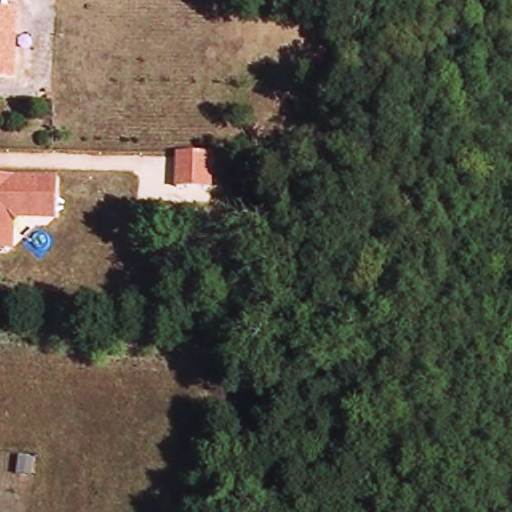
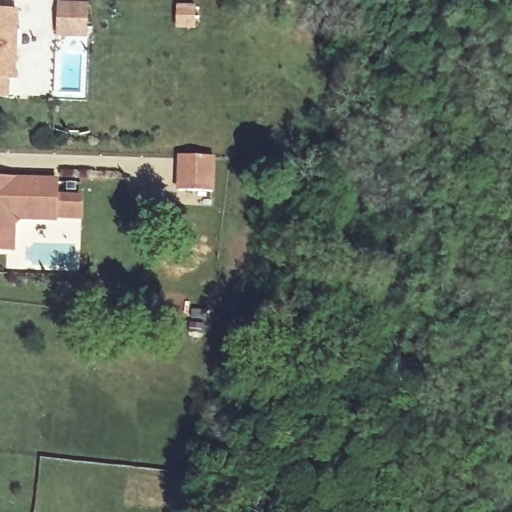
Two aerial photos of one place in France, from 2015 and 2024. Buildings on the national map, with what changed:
new [(55,1),(89,3),(89,36),(55,36),(55,1)]
unchanged [(3,79),(1,98),(0,99),(0,9),(11,9),(8,79),(3,79)]
unchanged [(178,155),(215,156),(214,193),(176,193),(178,155)]
unchanged [(59,176),(59,219),(16,218),(15,247),(0,247),(0,173),(59,176)]
unchanged [(84,195),(83,221),(59,219),(59,194),(84,195)]

